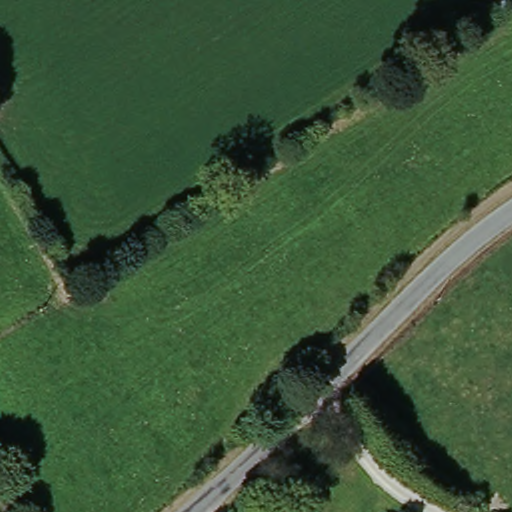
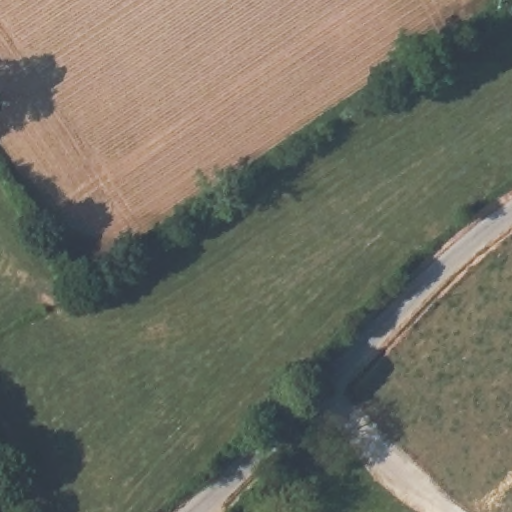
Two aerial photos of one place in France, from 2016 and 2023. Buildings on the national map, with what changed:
[]

